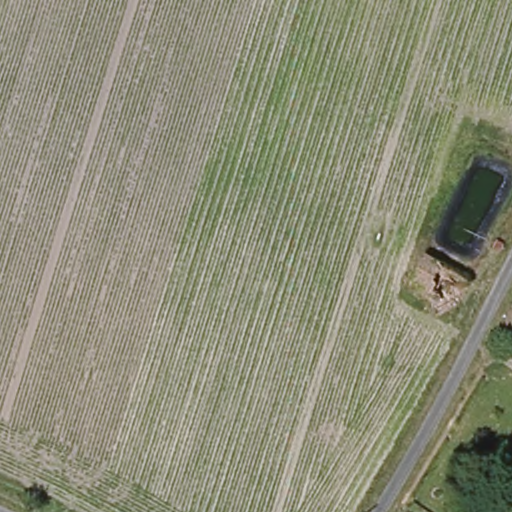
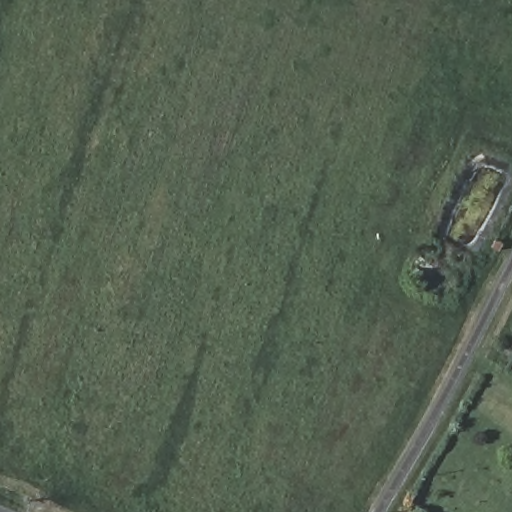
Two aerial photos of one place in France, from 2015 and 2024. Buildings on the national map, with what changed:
unchanged [(422,253),(470,281),(454,311),(405,284),(422,253)]

